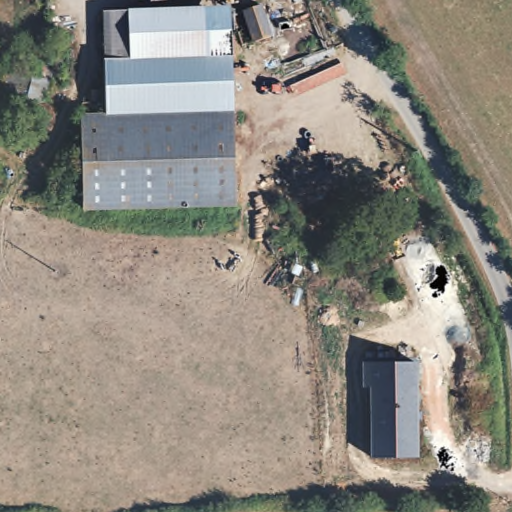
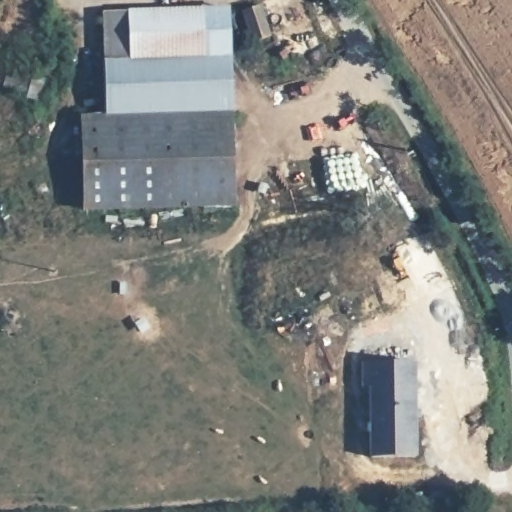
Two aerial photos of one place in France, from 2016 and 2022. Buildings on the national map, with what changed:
unchanged [(269,34),(254,41),(244,10),(257,3),(269,34)]
unchanged [(102,15),(228,8),(230,117),(104,119),(102,15)]
unchanged [(49,100),(2,92),(9,55),(54,66),(49,100)]
unchanged [(104,119),(230,117),(234,207),(83,211),(81,119),(104,119)]
unchanged [(369,458),(372,388),(365,388),(366,363),(417,365),(414,460),(369,458)]

